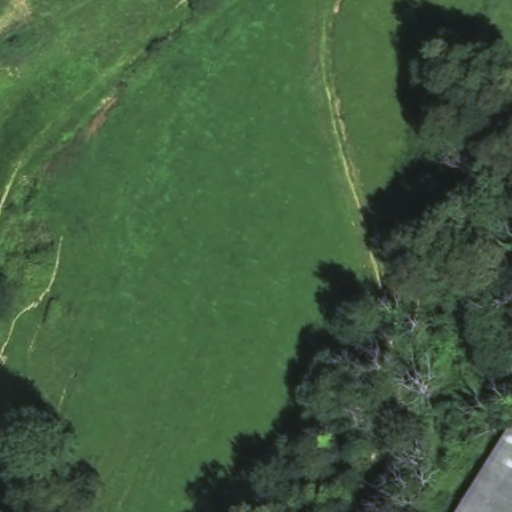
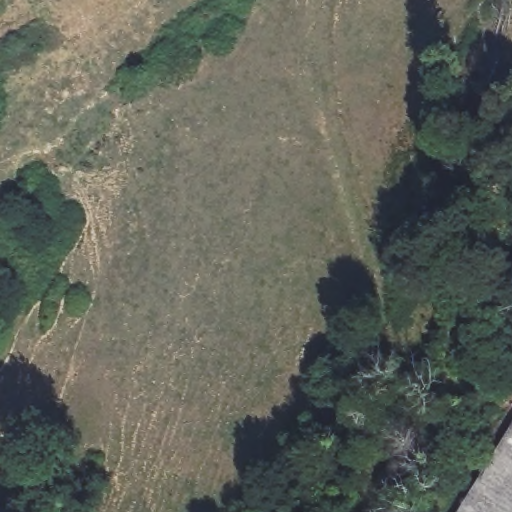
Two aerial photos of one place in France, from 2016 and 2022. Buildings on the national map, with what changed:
unchanged [(456,512),(512,420),(512,512),(456,512)]

